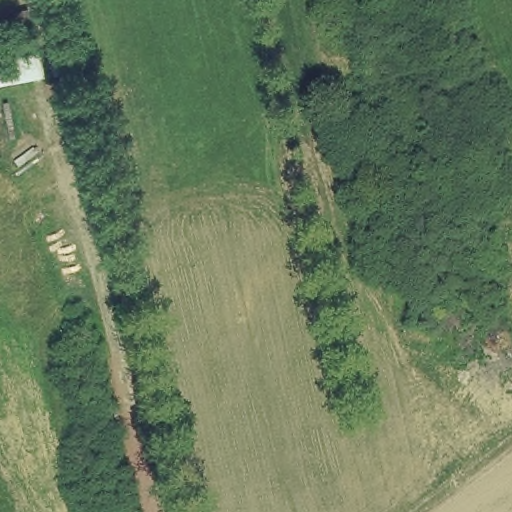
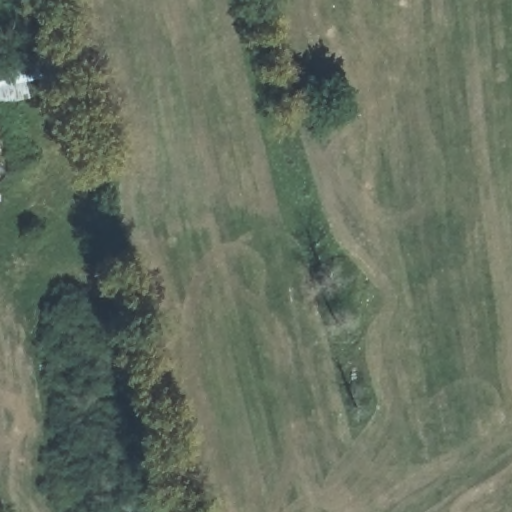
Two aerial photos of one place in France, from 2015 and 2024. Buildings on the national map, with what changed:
unchanged [(0,25),(23,18),(29,16),(34,30),(27,33),(7,40),(0,25)]
unchanged [(44,78),(0,86),(0,62),(39,55),(44,78)]

